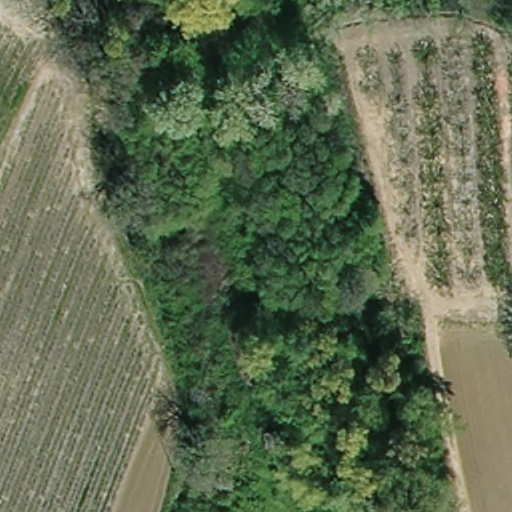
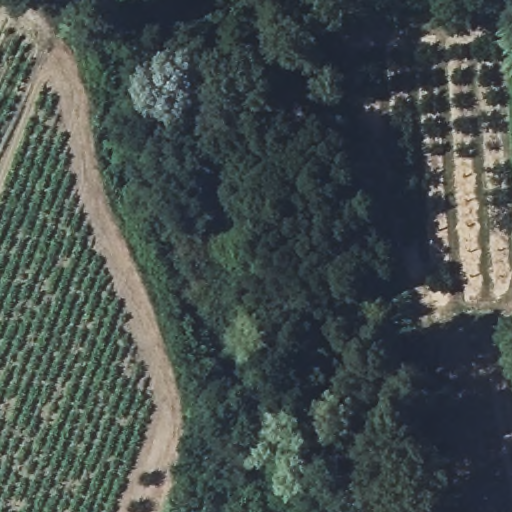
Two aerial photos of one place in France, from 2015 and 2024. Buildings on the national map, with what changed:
[]

